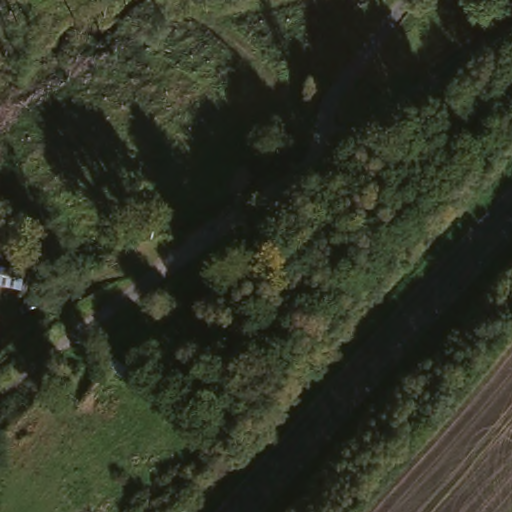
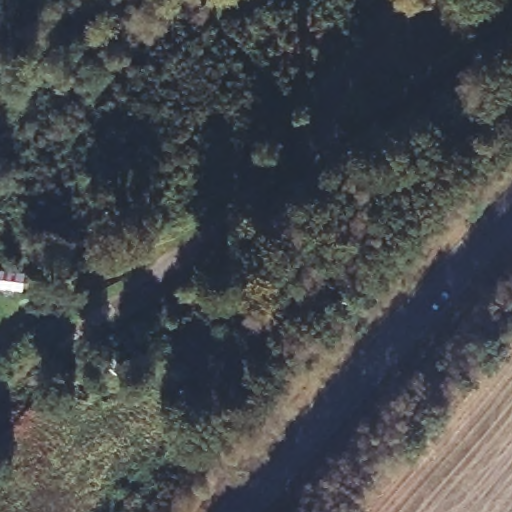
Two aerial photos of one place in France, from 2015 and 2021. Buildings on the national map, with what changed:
unchanged [(21,263),(22,270),(24,286),(3,286),(2,270),(21,263)]

